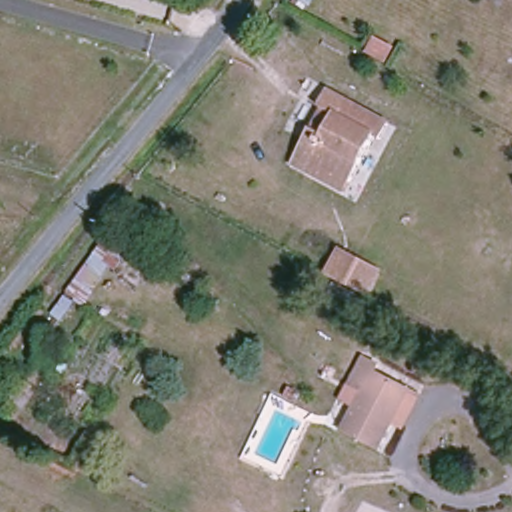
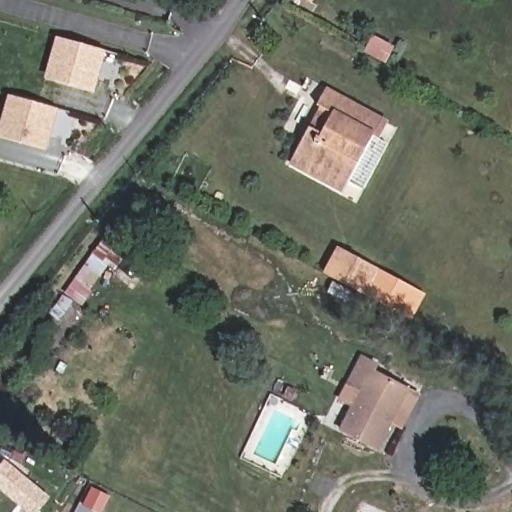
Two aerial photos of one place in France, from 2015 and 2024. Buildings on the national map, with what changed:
unchanged [(314,0),(310,6),(302,0),(314,0)]
new [(61,38),(105,50),(95,89),(50,76),(61,38)]
unchanged [(291,164),(296,152),(326,91),(389,123),(377,147),(368,143),(351,179),(345,190),(291,164)]
new [(15,96),(59,109),(47,148),(4,135),(15,96)]
unchanged [(95,254),(103,240),(125,256),(117,272),(95,254)]
unchanged [(323,272),(337,244),(382,270),(370,296),(323,272)]
unchanged [(358,389),(375,358),(390,365),(385,375),(419,395),(387,454),(352,435),(338,428),(358,389)]
new [(9,463),(52,498),(42,512),(35,512),(0,484),(0,473),(9,463)]

